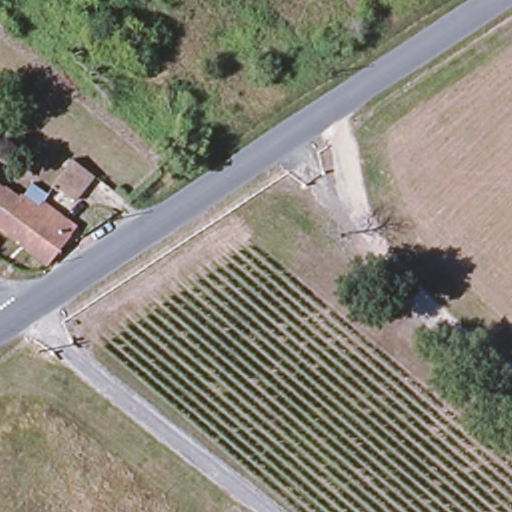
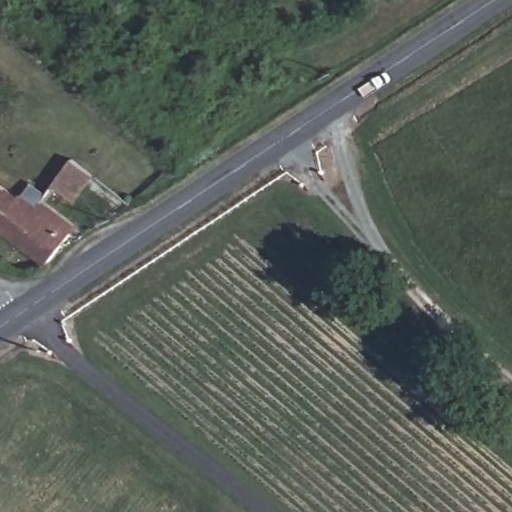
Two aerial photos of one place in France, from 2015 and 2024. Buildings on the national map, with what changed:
unchanged [(95,180),(75,208),(53,188),(69,161),(95,180)]
unchanged [(9,180),(2,190),(20,203),(0,231),(0,174),(9,180)]
unchanged [(0,238),(0,231),(20,203),(68,236),(45,269),(0,238)]

